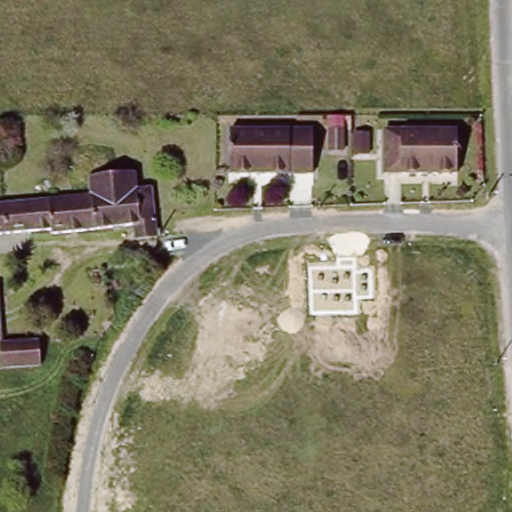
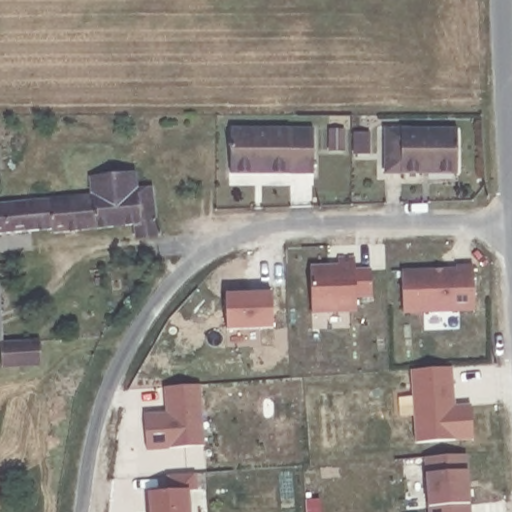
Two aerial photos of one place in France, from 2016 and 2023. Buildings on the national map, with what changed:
unchanged [(328,130),(341,130),(341,149),(328,150),(328,130)]
unchanged [(453,131),(454,175),(381,176),(381,132),(453,131)]
unchanged [(309,132),(309,175),(225,176),(225,132),(309,132)]
unchanged [(353,132),(361,132),(365,132),(365,152),(353,152),(353,132)]
unchanged [(22,225),(20,198),(84,191),(83,175),(127,170),(128,186),(145,185),(150,232),(126,235),(125,220),(44,229),(44,227),(10,230),(10,226),(22,225)]
unchanged [(10,230),(0,231),(0,200),(20,198),(22,225),(10,226),(10,230)]
unchanged [(358,300),(358,312),(312,314),(310,266),(337,265),(337,260),(354,259),(355,270),(372,269),(374,298),(358,300)]
new [(402,315),(401,271),(456,268),(455,267),(473,265),(475,312),(402,315)]
new [(274,328),(226,331),(224,294),(273,292),(274,328)]
unchanged [(36,338),(38,361),(0,364),(0,341),(36,338)]
new [(415,445),(408,372),(451,368),(454,407),(471,406),(475,440),(415,445)]
new [(146,452),(144,415),(165,412),(163,388),(200,384),(205,446),(146,452)]
new [(473,505),(470,505),(471,512),(426,512),(423,457),(469,455),(468,471),(473,505)]
new [(197,492),(190,492),(191,512),(149,512),(148,492),(165,491),(166,475),(196,473),(197,492)]

